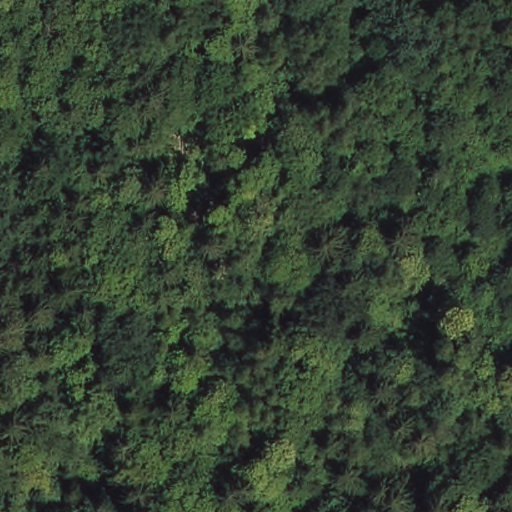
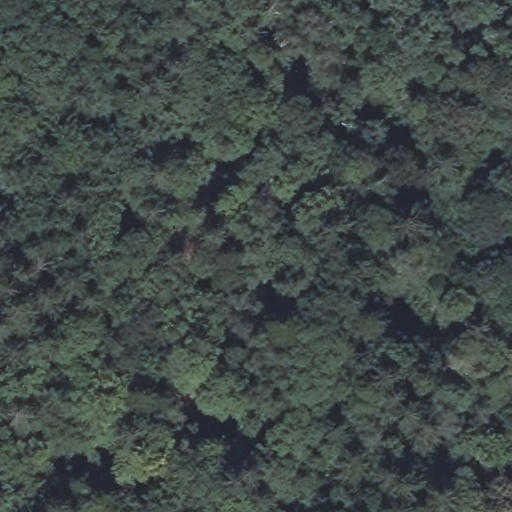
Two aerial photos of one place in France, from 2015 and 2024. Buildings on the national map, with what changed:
unchanged [(450,229),(437,206),(487,177),(499,200),(450,229)]

